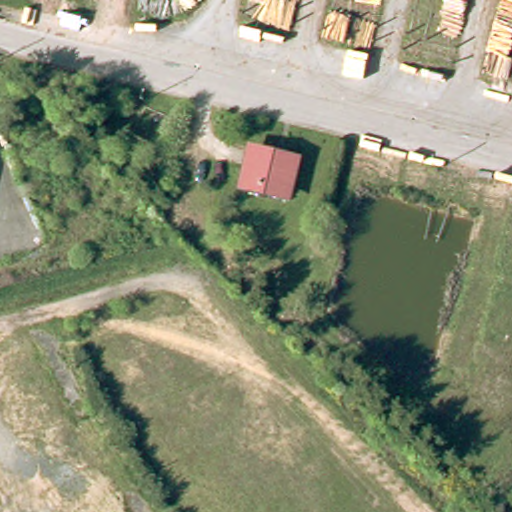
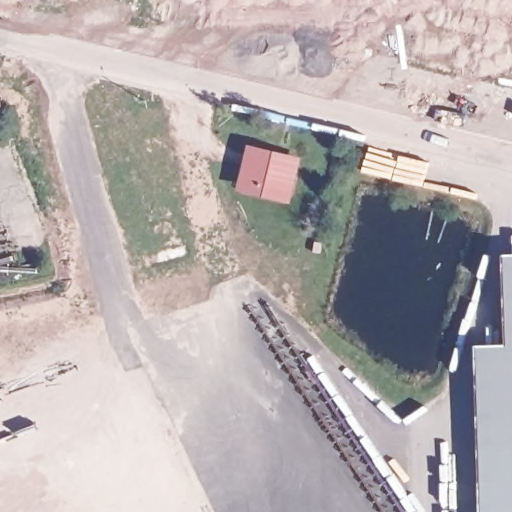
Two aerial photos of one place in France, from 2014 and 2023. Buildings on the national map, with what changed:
unchanged [(297,151),(289,187),(246,177),(254,141),(297,151)]
new [(507,342),(505,254),(512,254),(512,512),(482,512),(477,345),(507,342)]

